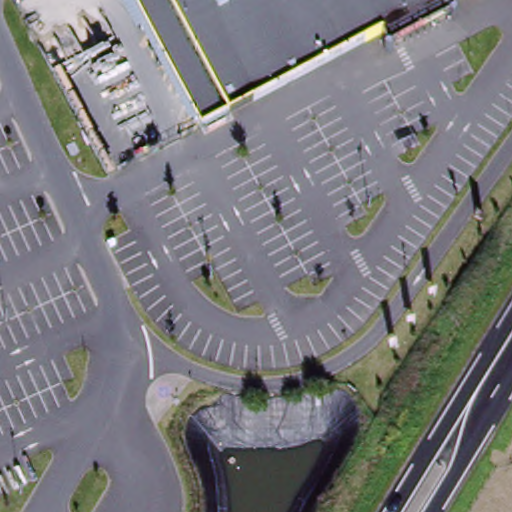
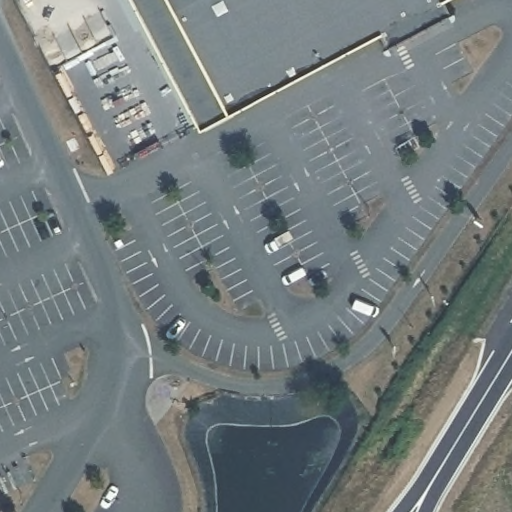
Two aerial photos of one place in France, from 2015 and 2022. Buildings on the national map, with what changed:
unchanged [(390,45),(382,31),(201,127),(133,0),(444,0),(452,11),(390,45)]

